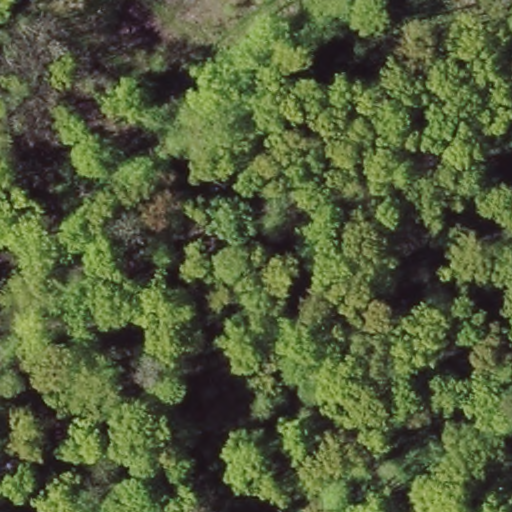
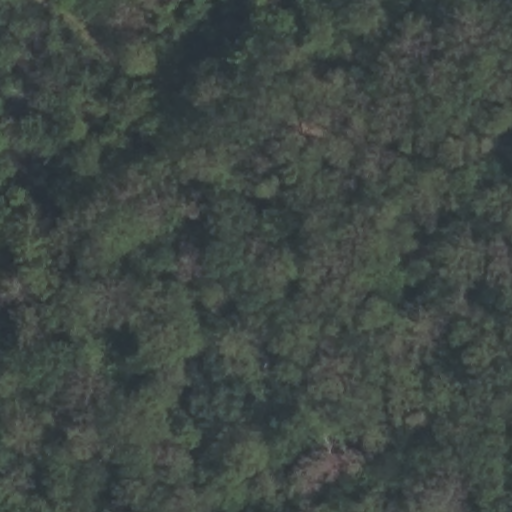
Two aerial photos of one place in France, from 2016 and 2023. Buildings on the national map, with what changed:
[]

